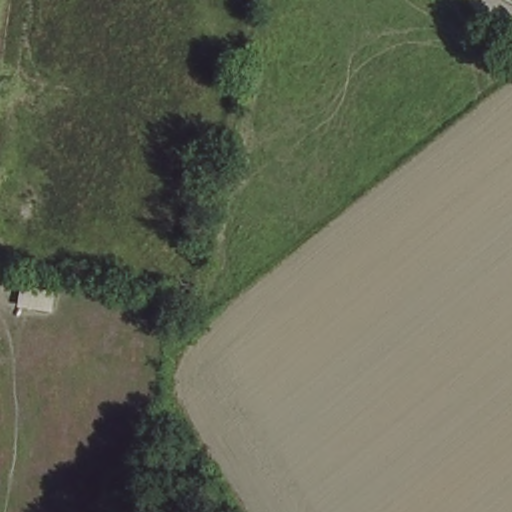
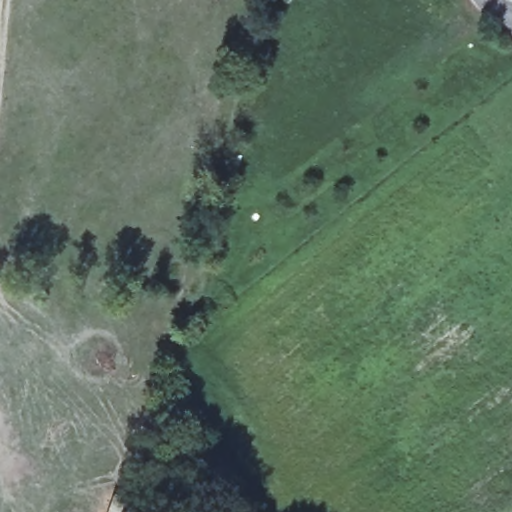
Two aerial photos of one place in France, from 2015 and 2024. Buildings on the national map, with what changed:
[]

